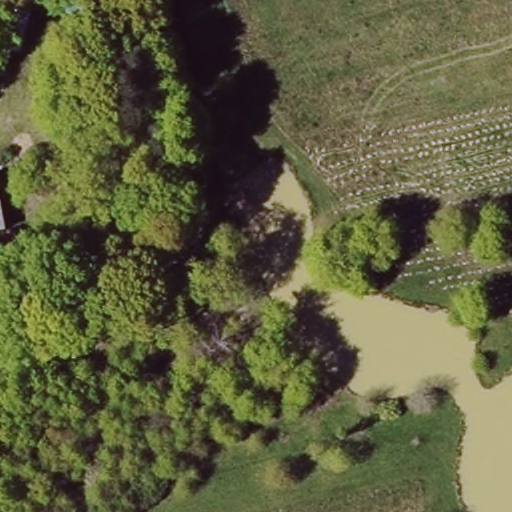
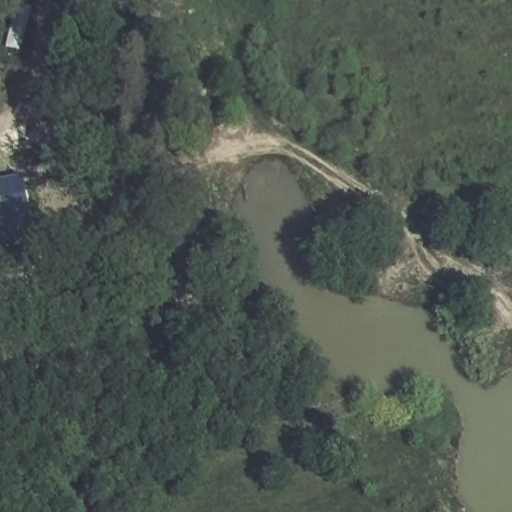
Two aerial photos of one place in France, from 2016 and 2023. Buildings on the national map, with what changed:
unchanged [(0,232),(0,204),(5,231),(0,232)]
unchanged [(29,350),(0,356),(0,300),(16,296),(29,350)]

